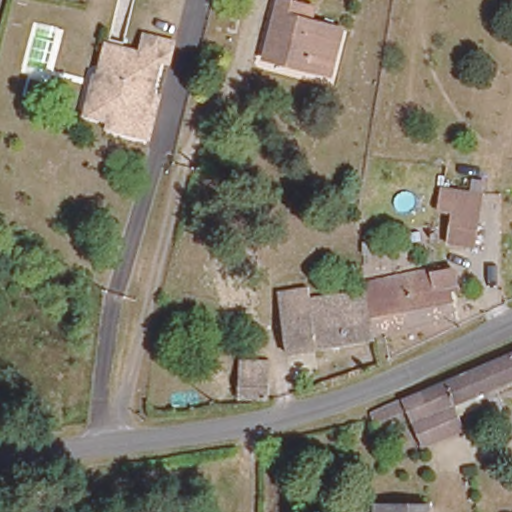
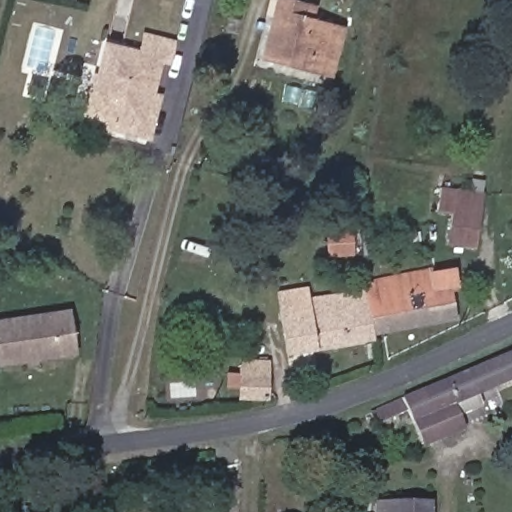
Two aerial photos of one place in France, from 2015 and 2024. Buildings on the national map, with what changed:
unchanged [(281,0),(288,0),(302,3),(318,6),(314,23),(334,27),(343,28),(332,74),(328,73),(268,60),(281,0)]
unchanged [(143,117),(106,111),(91,109),(107,40),(137,46),(141,29),(172,35),(167,55),(158,53),(150,87),(143,117)]
unchanged [(162,89),(151,132),(104,124),(106,111),(143,117),(150,87),(162,89)]
unchanged [(442,239),(447,211),(428,207),(433,184),(482,189),(473,242),(442,239)]
unchanged [(369,329),(365,281),(365,274),(403,269),(456,261),(459,280),(448,282),(451,318),(369,329)]
unchanged [(370,338),(281,349),(273,284),(306,281),(306,288),(365,281),(369,329),(370,338)]
new [(70,308),(78,357),(38,360),(39,364),(27,366),(27,362),(0,367),(0,319),(70,308)]
unchanged [(401,409),(367,423),(362,413),(512,351),(512,383),(453,407),(462,427),(415,444),(401,409)]
unchanged [(235,396),(237,361),(264,362),(264,397),(235,396)]
unchanged [(430,503),(430,512),(375,512),(375,503),(430,503)]

